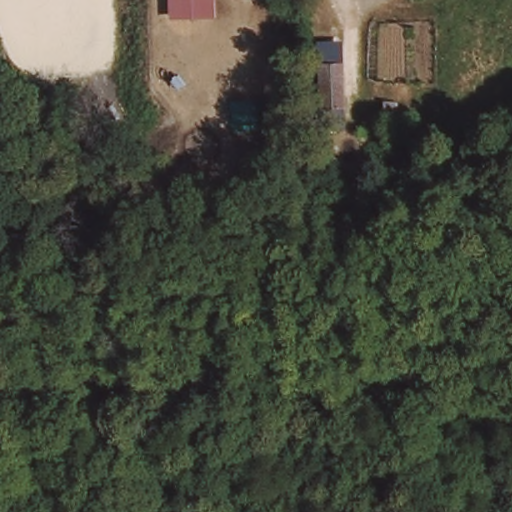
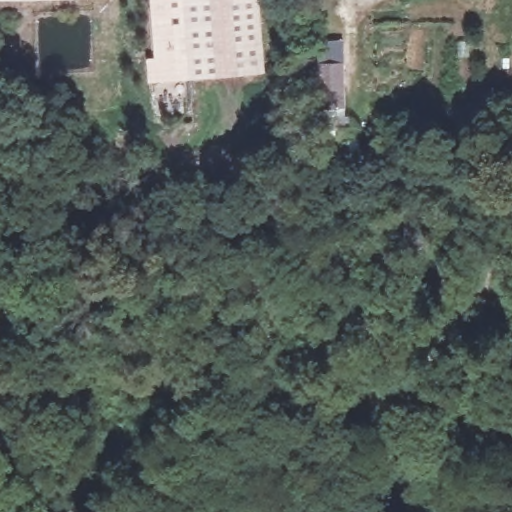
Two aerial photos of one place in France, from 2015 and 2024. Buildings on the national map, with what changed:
new [(147,82),(146,57),(154,56),(149,0),(182,0),(188,79),(147,82)]
demolished [(169,21),(168,0),(210,0),(211,20),(169,21)]
new [(188,79),(182,0),(259,0),(265,73),(188,79)]
unchanged [(313,104),(309,44),(342,41),(345,105),(313,104)]

